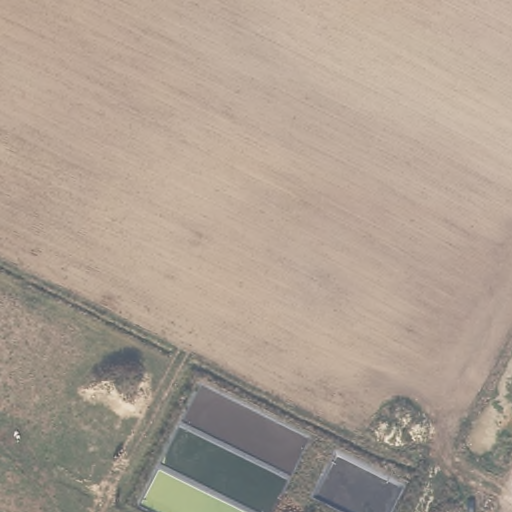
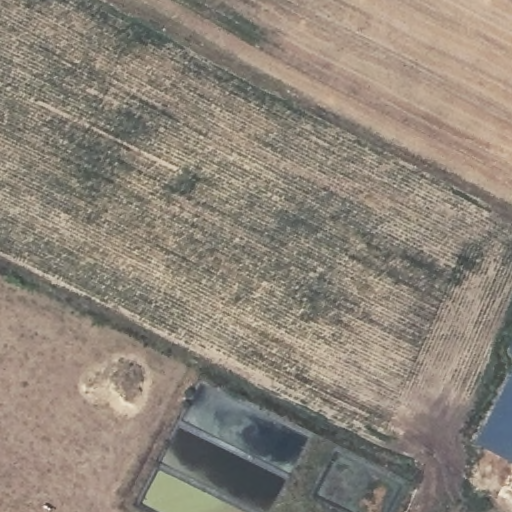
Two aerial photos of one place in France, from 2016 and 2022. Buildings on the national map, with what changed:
new [(512,351),(511,351),(512,350),(512,351)]
new [(512,370),(512,461),(475,441),(512,370)]

